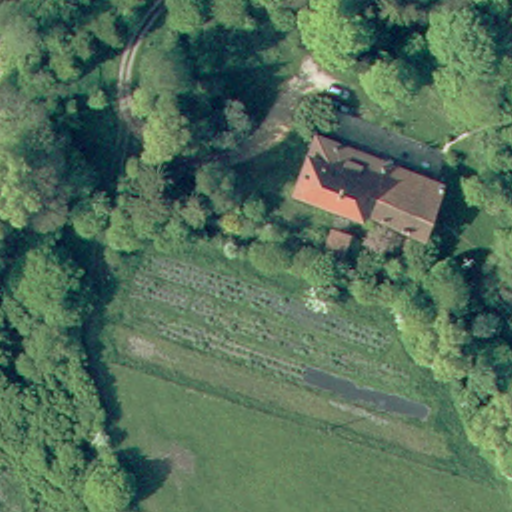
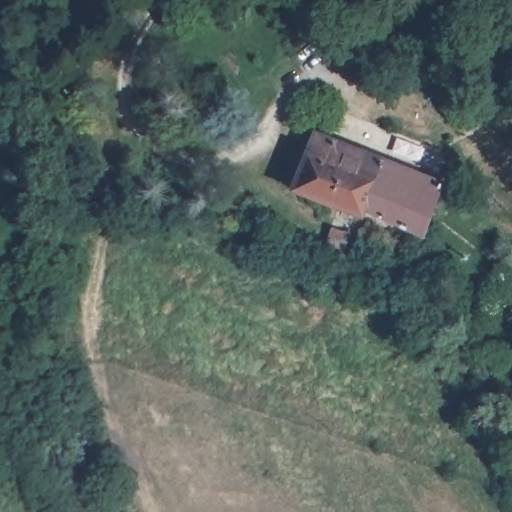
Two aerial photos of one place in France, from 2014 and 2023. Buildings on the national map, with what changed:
unchanged [(430,226),(361,204),(359,211),(288,187),(307,126),(447,172),(430,226)]
unchanged [(425,241),(414,238),(417,228),(427,230),(425,241)]

